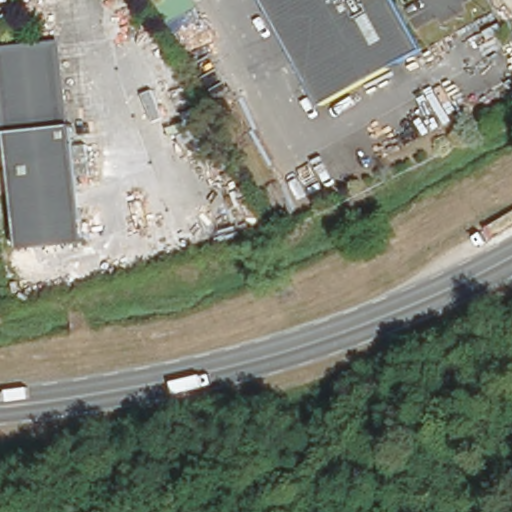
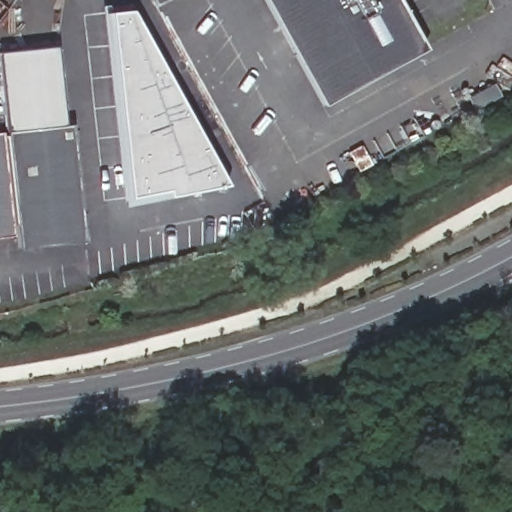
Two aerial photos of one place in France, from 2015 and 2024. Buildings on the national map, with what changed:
new [(158,4),(156,0),(166,0),(158,4)]
unchanged [(414,54),(318,105),(261,0),(385,0),(414,54)]
new [(109,14),(130,12),(224,186),(129,196),(109,14)]
unchanged [(51,42),(60,122),(66,121),(79,239),(13,247),(0,131),(0,47),(51,42)]

